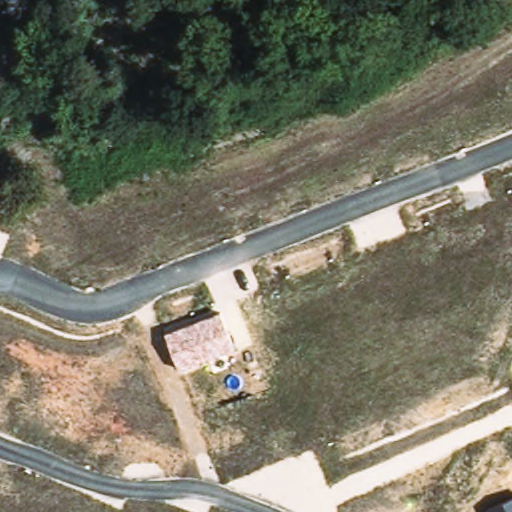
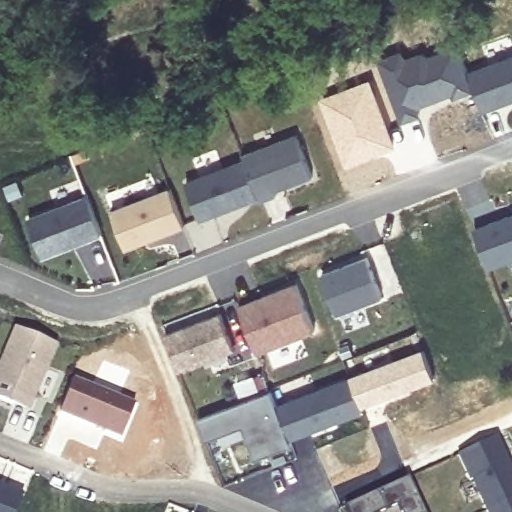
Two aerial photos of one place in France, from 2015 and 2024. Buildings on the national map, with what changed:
new [(456,97),(454,94),(419,107),(422,115),(402,122),(377,61),(402,50),(406,59),(422,52),(431,56),(457,45),(468,72),(512,55),(512,101),(483,112),(475,90),(456,97)]
new [(371,78),(397,145),(347,166),(320,97),(371,78)]
new [(297,135),(313,177),(276,192),(277,196),(262,202),(260,198),(246,162),(244,156),(297,135)]
new [(246,162),(260,198),(201,221),(187,184),(246,162)]
new [(171,190),(185,226),(127,249),(112,212),(171,190)]
new [(88,197),(102,235),(44,257),(30,220),(88,197)]
new [(512,260),(487,270),(472,232),(512,216),(512,260)]
new [(367,261),(382,301),(337,319),(321,278),(367,261)]
new [(296,287),(314,333),(257,356),(238,310),(296,287)]
unchanged [(235,351),(179,371),(165,333),(219,312),(235,351)]
new [(14,407),(0,401),(0,369),(17,330),(55,346),(45,371),(59,377),(49,400),(36,394),(34,398),(28,412),(14,407)]
new [(353,377),(423,351),(434,379),(363,406),(353,377)]
new [(74,375),(133,403),(118,437),(58,411),(74,375)]
new [(350,381),(363,413),(290,442),(277,410),(350,381)]
demolished [(490,387),(485,402),(471,406),(464,388),(479,382),(490,387)]
new [(271,395),(277,410),(290,442),(292,448),(256,463),(242,430),(206,445),(197,423),(271,395)]
unchanged [(460,455),(497,438),(512,470),(512,498),(487,510),(460,455)]
new [(409,480),(424,512),(400,512),(398,507),(387,512),(341,512),(341,511),(346,508),(409,480)]
new [(24,496),(17,512),(0,512),(0,486),(24,496)]
unchanged [(512,498),(512,512),(488,512),(487,510),(512,498)]

